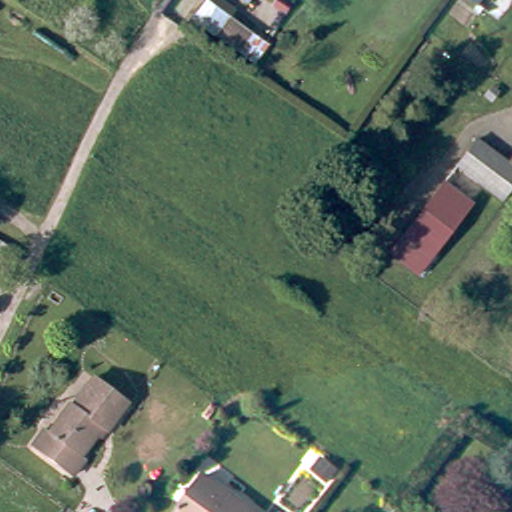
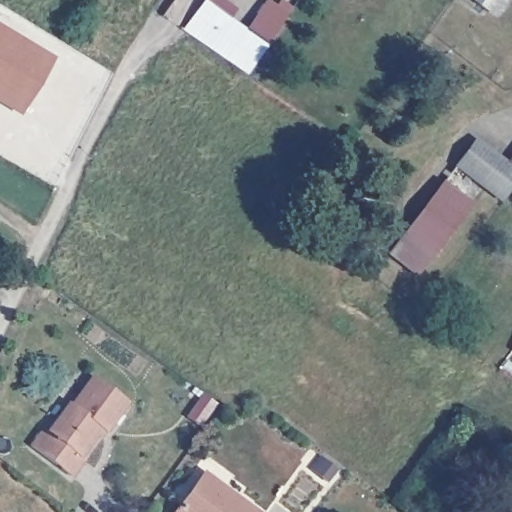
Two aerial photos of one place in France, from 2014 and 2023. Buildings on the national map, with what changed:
new [(210,0),(219,0),(235,12),(230,19),(267,47),(255,63),(206,27),(204,30),(193,22),(210,0)]
unchanged [(477,3),(473,0),(479,0),(477,3)]
demolished [(477,3),(479,0),(512,0),(512,16),(505,25),(477,3)]
demolished [(512,16),(512,30),(505,25),(512,16)]
new [(15,94),(0,84),(0,29),(40,53),(15,94)]
new [(40,53),(52,60),(21,112),(0,100),(0,84),(15,94),(40,53)]
unchanged [(458,167),(477,140),(511,166),(512,164),(512,190),(503,201),(458,167)]
unchanged [(398,256),(410,240),(408,239),(450,184),(478,204),(436,260),(424,276),(398,256)]
unchanged [(97,428),(81,451),(85,454),(73,472),(33,442),(45,425),(50,429),(71,399),(73,401),(94,372),(128,397),(107,427),(103,432),(97,428)]
unchanged [(193,487),(202,477),(201,476),(201,474),(202,473),(227,492),(228,490),(258,512),(173,512),(192,486),(193,487)]
unchanged [(316,501),(304,491),(301,488),(311,476),(315,479),(326,489),(316,501)]

